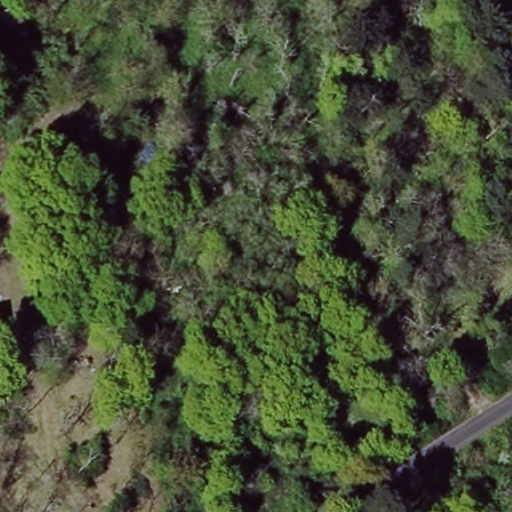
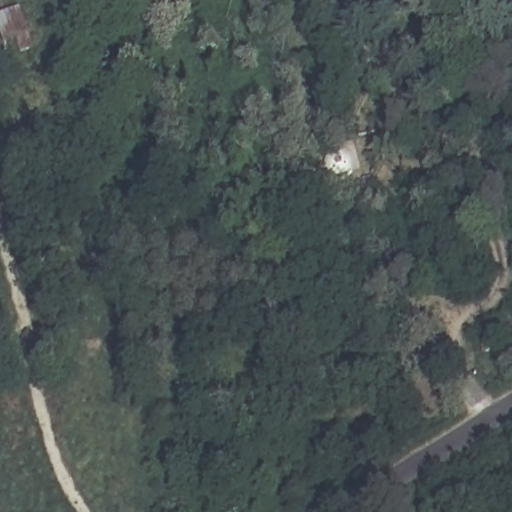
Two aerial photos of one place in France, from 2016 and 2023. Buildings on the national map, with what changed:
unchanged [(32,46),(5,57),(0,43),(0,11),(15,7),(32,46)]
unchanged [(490,341),(493,355),(481,356),(479,343),(490,341)]

